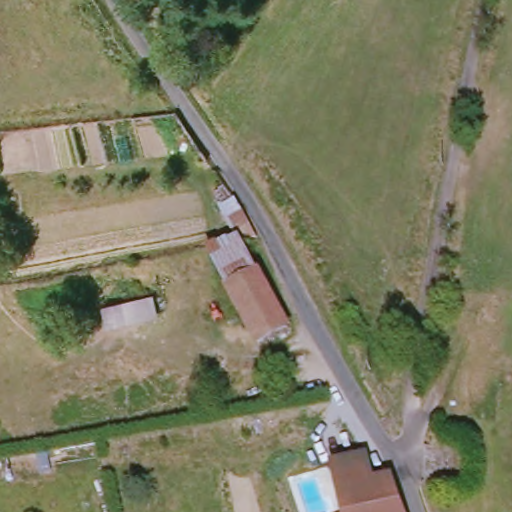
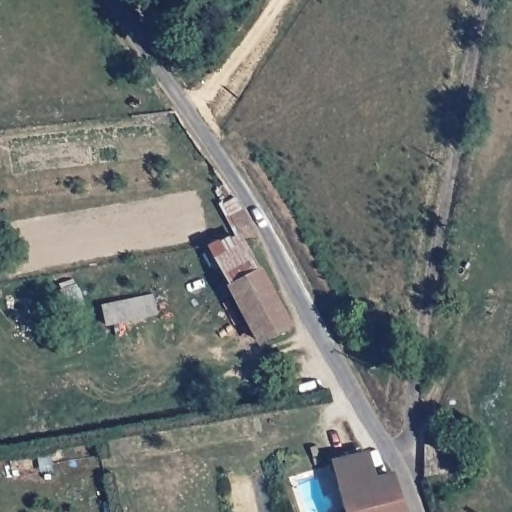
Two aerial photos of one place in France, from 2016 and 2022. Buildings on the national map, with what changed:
unchanged [(237,191),(263,237),(252,249),(263,270),(291,327),(259,346),(227,286),(208,247),(233,238),(220,202),(237,191)]
unchanged [(107,309),(154,298),(157,317),(107,327),(107,309)]
unchanged [(427,442),(460,441),(460,456),(460,475),(430,476),(428,459),(427,442)]
unchanged [(331,457),(372,447),(380,474),(397,468),(412,512),(345,512),(331,457)]

